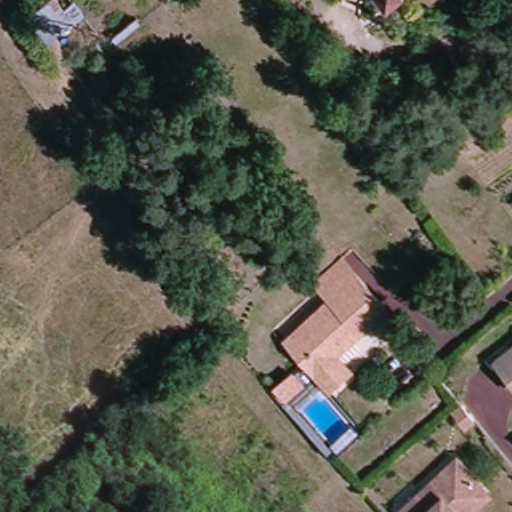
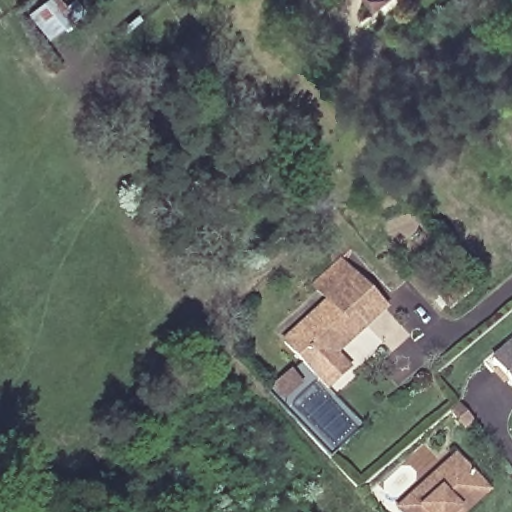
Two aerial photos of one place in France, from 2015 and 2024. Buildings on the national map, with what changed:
unchanged [(397,0),(392,3),(390,0),(397,0)]
unchanged [(361,372),(341,390),(296,332),(341,297),(337,292),(326,278),(357,253),(367,266),(387,291),(405,313),(382,332),(350,357),(361,372)]
unchanged [(512,355),(512,389),(495,369),(512,355)]
unchanged [(288,385),(304,372),(312,383),(297,396),(288,385)]
unchanged [(452,512),(404,512),(397,504),(454,452),(476,477),(450,500),(457,507),(452,512)]

